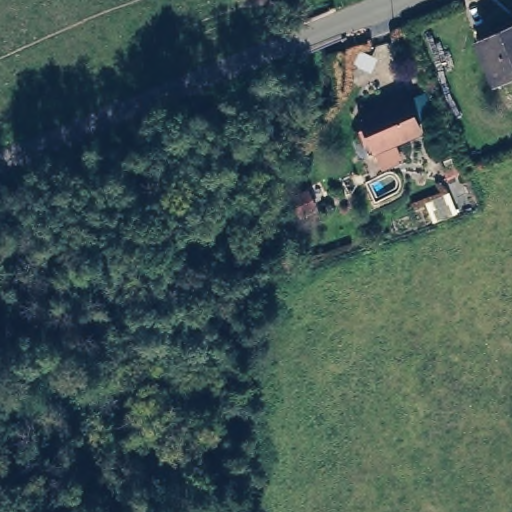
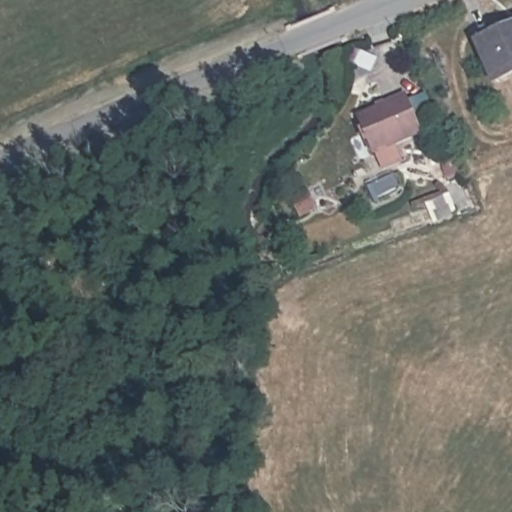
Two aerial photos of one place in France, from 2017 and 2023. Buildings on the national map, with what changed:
unchanged [(481,44),(512,30),(512,73),(497,80),(481,44)]
unchanged [(383,172),(375,159),(362,122),(411,101),(426,137),(395,150),(401,165),(383,172)]

